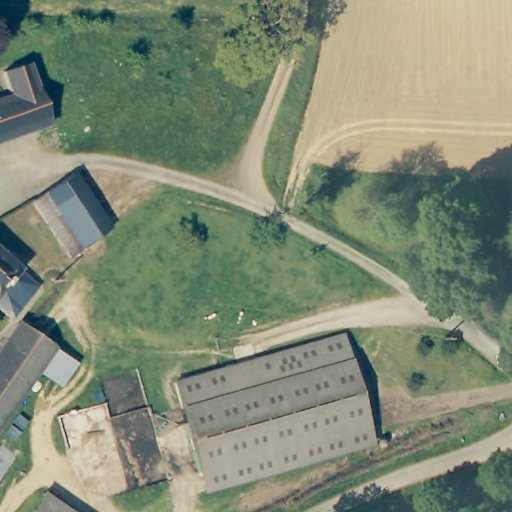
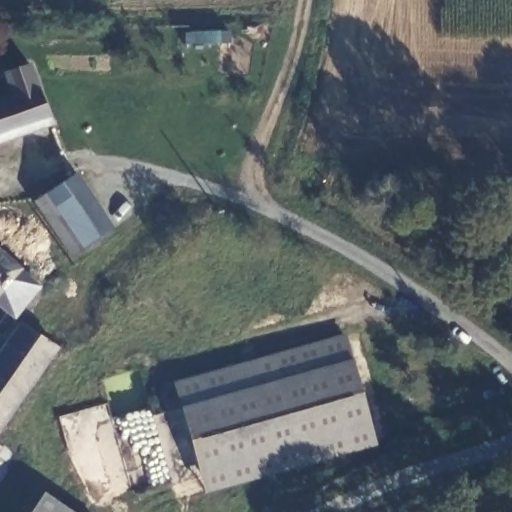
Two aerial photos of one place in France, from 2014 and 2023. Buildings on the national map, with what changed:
unchanged [(51,124),(50,124),(50,125),(0,141),(0,102),(12,97),(2,73),(27,64),(51,124)]
unchanged [(93,201),(111,230),(84,248),(46,194),(74,175),(93,201)]
unchanged [(84,248),(71,258),(33,204),(46,194),(84,248)]
unchanged [(7,317),(0,311),(0,259),(32,288),(7,317)]
unchanged [(29,380),(0,421),(0,345),(15,323),(50,347),(29,380)]
unchanged [(374,445),(204,492),(174,383),(342,335),(374,445)]
unchanged [(10,456),(0,471),(0,449),(2,451),(10,456)]
unchanged [(30,512),(43,493),(71,512),(30,512)]

